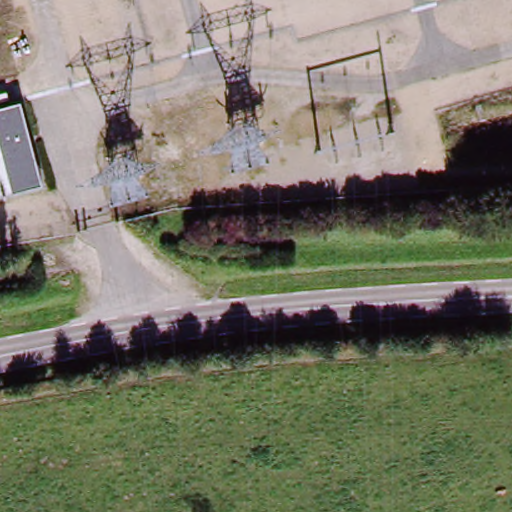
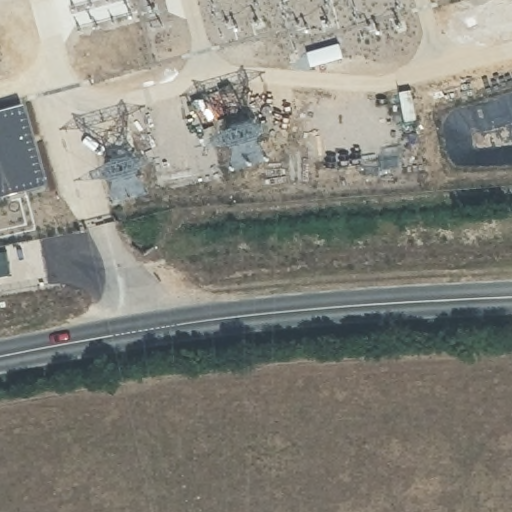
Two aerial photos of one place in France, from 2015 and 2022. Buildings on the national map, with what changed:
unchanged [(0,200),(0,109),(21,104),(45,191),(0,200)]

